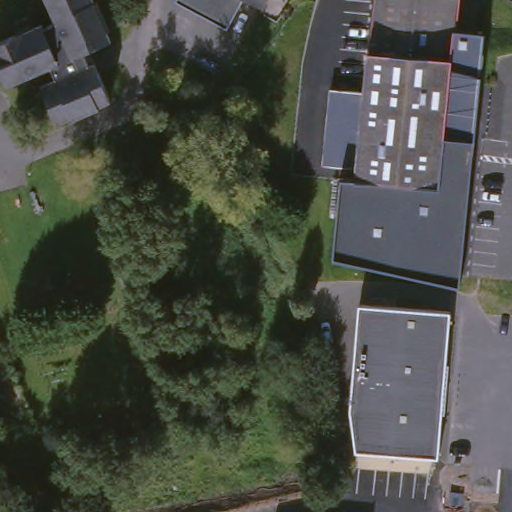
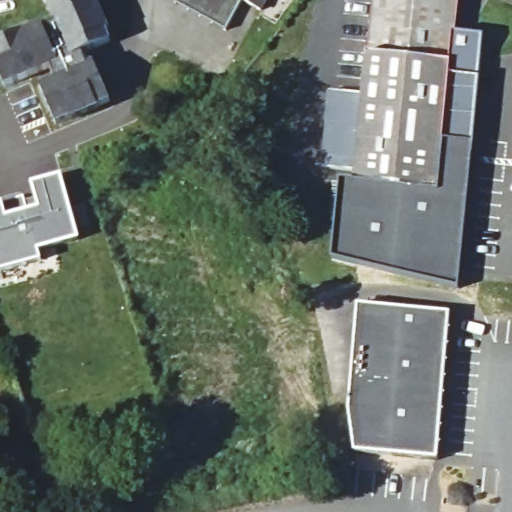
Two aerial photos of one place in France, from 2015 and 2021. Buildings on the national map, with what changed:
unchanged [(106,46),(78,57),(84,70),(88,69),(104,105),(51,128),(36,91),(50,85),(44,72),(0,91),(0,45),(37,29),(38,32),(51,27),(38,0),(85,0),(106,46)]
unchanged [(178,0),(271,0),(261,15),(243,5),(226,35),(174,7),(178,0)]
unchanged [(279,5),(271,0),(282,0),(279,5)]
unchanged [(449,37),(478,40),(468,147),(438,144),(433,195),(349,186),(350,175),(318,171),(325,95),(358,98),(361,59),(363,59),(369,0),(453,0),(449,37)]
new [(0,273),(0,204),(23,197),(24,203),(35,200),(31,185),(62,176),(79,238),(49,247),(39,250),(42,261),(0,273)]
unchanged [(442,403),(438,458),(361,451),(355,451),(351,410),(351,396),(358,305),(449,312),(442,403)]

